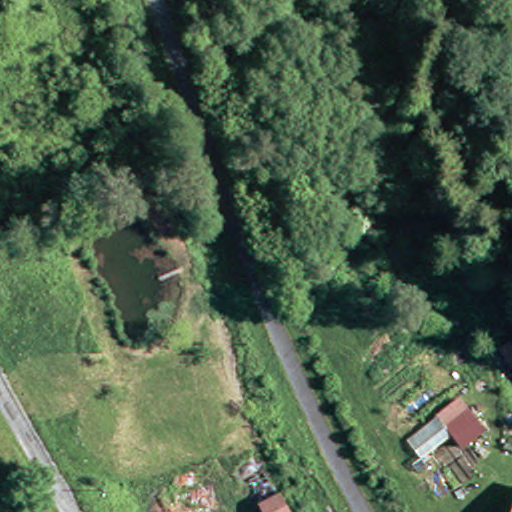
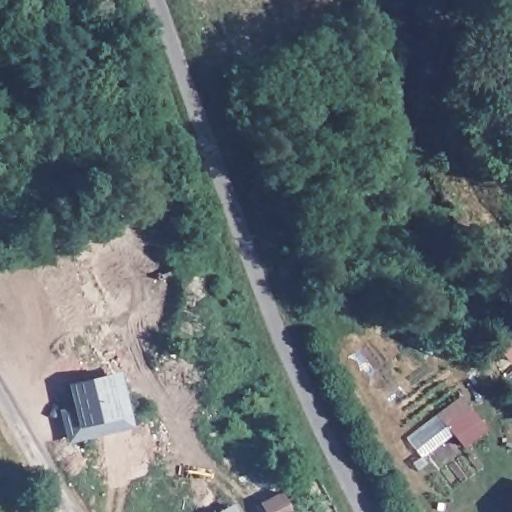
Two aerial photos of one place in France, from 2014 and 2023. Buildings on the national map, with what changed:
unchanged [(506,72),(512,42),(512,73),(506,72)]
new [(70,405),(65,383),(107,375),(116,372),(132,429),(65,444),(57,410),(70,405)]
new [(485,427),(462,446),(435,415),(459,397),(485,427)]
unchanged [(281,491),(292,512),(263,512),(257,502),(281,491)]
unchanged [(512,501),(512,512),(509,512),(512,501)]
new [(232,505),(236,512),(220,512),(232,505)]

